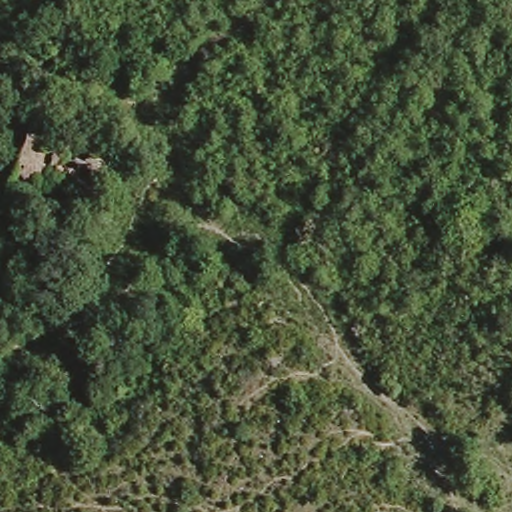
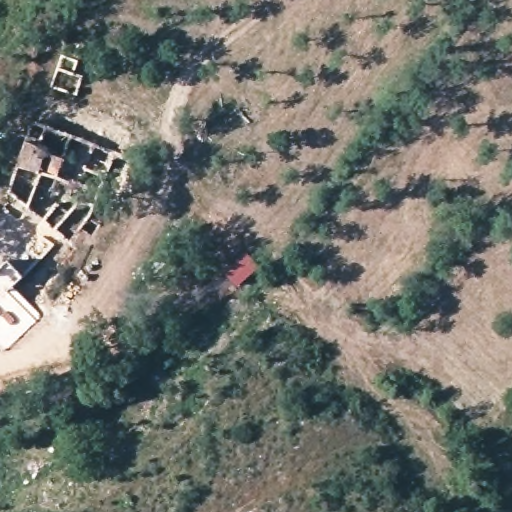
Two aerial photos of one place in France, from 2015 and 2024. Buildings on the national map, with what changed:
unchanged [(48,160),(34,196),(12,180),(18,166),(23,151),(48,160)]
new [(8,259),(23,276),(13,285),(42,316),(5,350),(0,345),(0,266),(8,259)]

